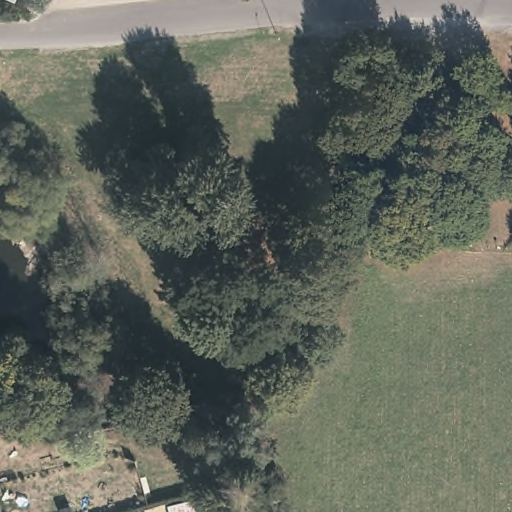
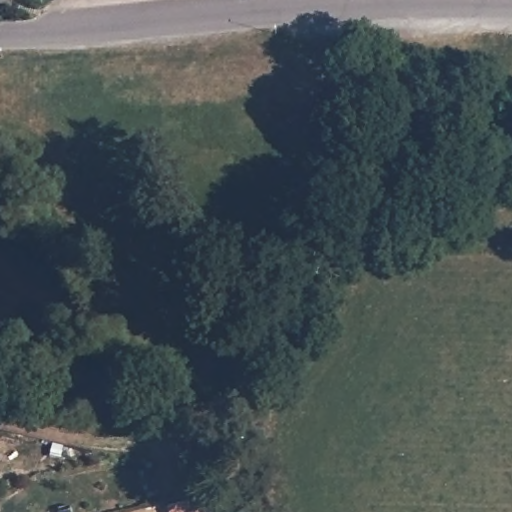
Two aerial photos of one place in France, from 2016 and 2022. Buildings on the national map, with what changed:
unchanged [(168,506),(229,488),(238,512),(170,512),(168,506)]

